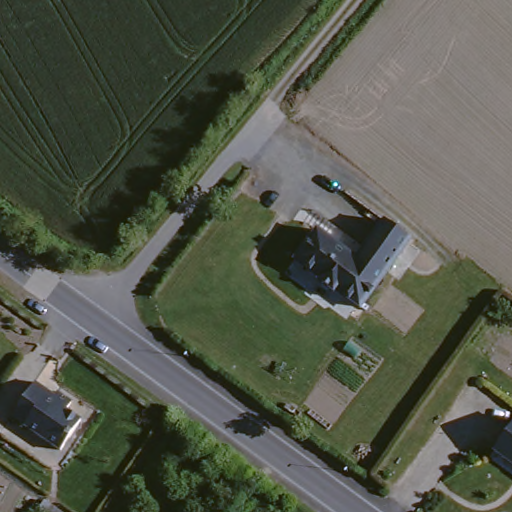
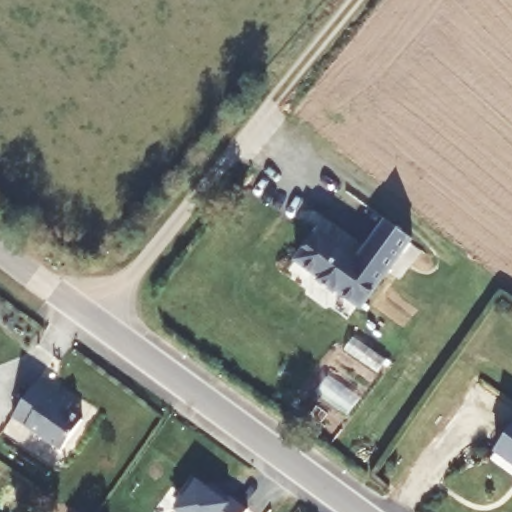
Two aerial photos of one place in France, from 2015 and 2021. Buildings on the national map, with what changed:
unchanged [(414,239),(356,312),(287,261),(314,222),(353,252),(378,217),(414,239)]
unchanged [(15,416),(38,385),(55,397),(60,393),(73,402),(66,410),(81,421),(61,451),(15,416)]
unchanged [(496,448),(512,428),(512,465),(496,453),(496,448)]
new [(229,500),(232,497),(247,507),(244,512),(180,512),(176,508),(198,478),(229,500)]

